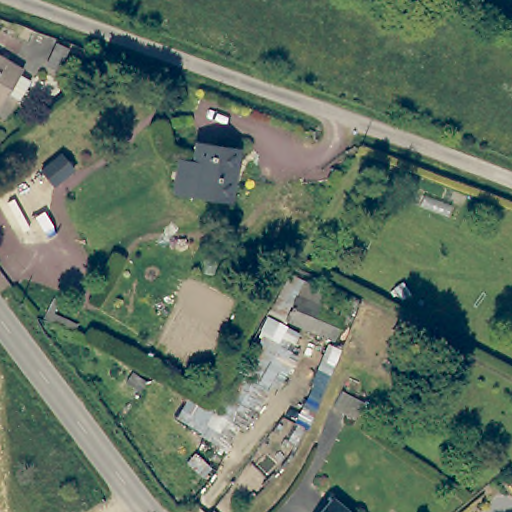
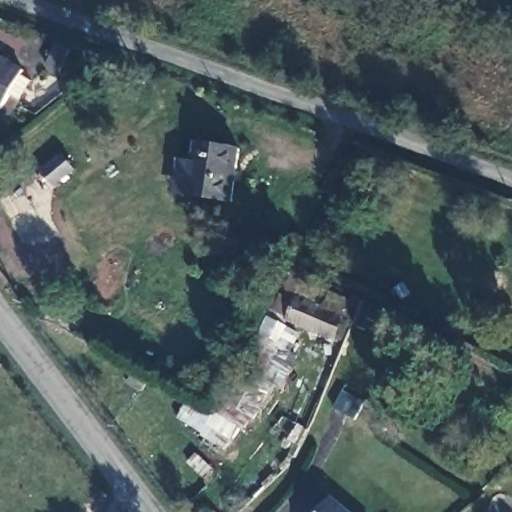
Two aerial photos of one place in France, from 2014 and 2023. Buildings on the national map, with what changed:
unchanged [(52,70),(40,65),(50,40),(64,46),(52,70)]
unchanged [(9,92),(0,109),(0,57),(21,67),(20,70),(32,77),(21,99),(9,92)]
unchanged [(181,159),(197,161),(199,144),(243,150),(236,200),(235,203),(191,198),(192,194),(176,192),(181,159)]
unchanged [(46,159),(60,175),(39,193),(25,177),(46,159)]
unchanged [(292,294),(341,321),(328,346),(301,331),(278,319),(292,294)]
unchanged [(187,397),(210,410),(266,312),(278,319),(301,331),(229,453),(174,417),(187,397)]
unchanged [(321,512),(333,497),(351,512),(321,512)]

